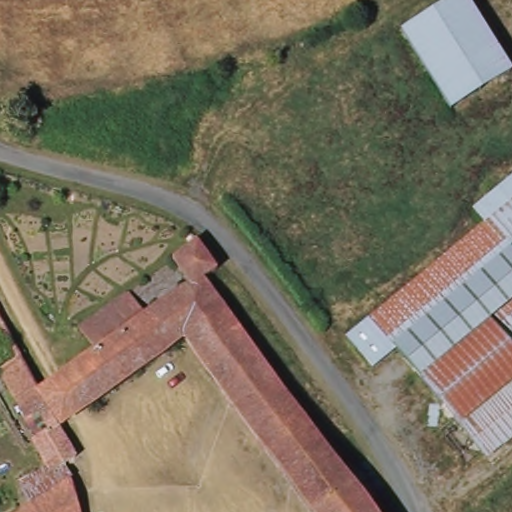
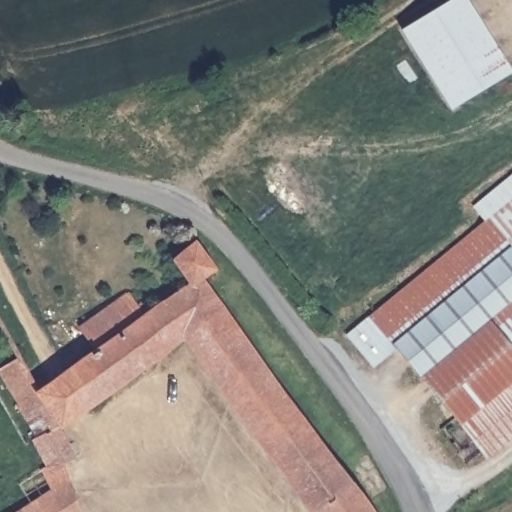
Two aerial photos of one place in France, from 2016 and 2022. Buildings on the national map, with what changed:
unchanged [(456,0),(465,0),(507,77),(446,113),(401,32),(456,0)]
unchanged [(512,247),(512,439),(485,461),(458,424),(395,348),(374,369),(345,335),(484,220),(473,206),(512,174),(512,245),(511,246),(512,247)]
unchanged [(199,280),(220,309),(222,312),(183,339),(180,341),(166,351),(140,368),(110,390),(98,398),(94,400),(55,427),(54,428),(70,459),(59,466),(57,467),(46,474),(42,467),(31,447),(34,445),(32,442),(31,440),(0,381),(0,370),(15,361),(32,390),(90,352),(78,331),(125,296),(141,319),(182,290),(166,259),(178,249),(190,241),(210,268),(199,280)]
unchanged [(265,371),(354,495),(365,512),(306,512),(180,341),(183,339),(222,312),(262,367),(265,371)]
unchanged [(65,483),(66,484),(27,506),(14,483),(21,479),(42,467),(46,474),(57,467),(65,483)]
unchanged [(66,484),(75,512),(16,512),(27,506),(66,484)]

